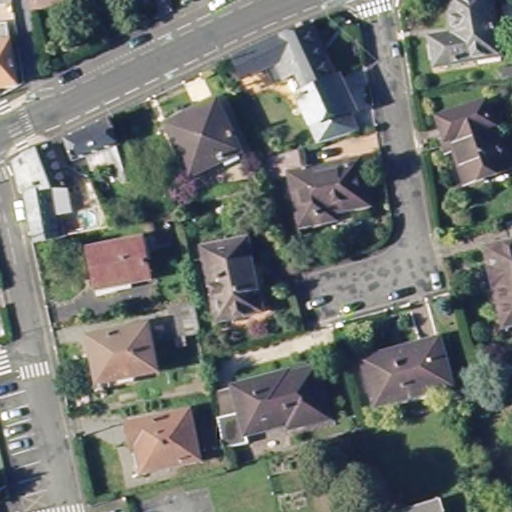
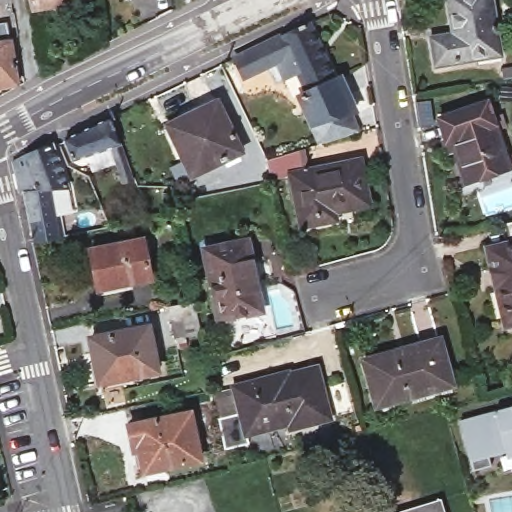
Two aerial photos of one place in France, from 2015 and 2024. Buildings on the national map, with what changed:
unchanged [(11,0),(11,3),(12,8),(0,10),(0,0),(11,0)]
unchanged [(60,6),(60,15),(49,17),(47,9),(32,12),(31,0),(77,0),(77,4),(60,6)]
unchanged [(440,70),(435,41),(457,39),(451,0),(495,0),(503,53),(505,61),(485,64),(440,70)]
unchanged [(0,44),(0,25),(11,23),(14,42),(20,83),(0,86),(0,44)]
unchanged [(361,128),(325,144),(305,99),(311,95),(302,74),(280,86),(273,69),(249,80),(239,59),(308,27),(313,25),(361,128)]
unchanged [(507,83),(507,72),(512,72),(512,82),(507,83)]
unchanged [(219,101),(245,153),(195,178),(170,126),(219,101)]
unchanged [(441,115),(492,106),(495,125),(505,124),(507,135),(497,137),(503,176),(458,184),(451,147),(458,146),(456,135),(445,137),(441,115)]
unchanged [(131,184),(122,187),(110,150),(74,163),(65,141),(110,119),(131,184)]
unchanged [(14,161),(51,146),(69,190),(56,191),(59,200),(51,202),(59,239),(36,244),(26,193),(20,194),(14,161)]
unchanged [(311,173),(361,163),(370,209),(338,215),(340,223),(301,230),(291,181),(267,186),(262,161),(306,149),(311,173)]
unchanged [(508,227),(512,226),(512,250),(508,227)]
unchanged [(207,249),(250,240),(265,313),(222,322),(207,249)]
unchanged [(90,252),(141,242),(149,281),(99,292),(90,252)]
unchanged [(502,329),(496,291),(492,292),(488,271),(493,270),(490,254),(512,250),(512,328),(502,329)]
unchanged [(177,343),(170,309),(195,304),(201,337),(177,343)]
unchanged [(150,332),(160,377),(102,388),(93,342),(150,332)]
unchanged [(441,349),(451,392),(377,411),(366,368),(441,349)]
unchanged [(218,388),(243,383),(296,372),(297,374),(316,370),(327,368),(330,381),(338,417),(298,426),(297,421),(255,430),(257,441),(230,447),(227,429),(218,388)]
new [(490,461),(493,469),(475,474),(461,426),(512,411),(512,454),(490,461)]
unchanged [(149,469),(143,443),(136,444),(133,428),(195,413),(206,462),(174,469),(150,474),(149,469)]
unchanged [(440,503),(443,512),(410,512),(440,503)]

